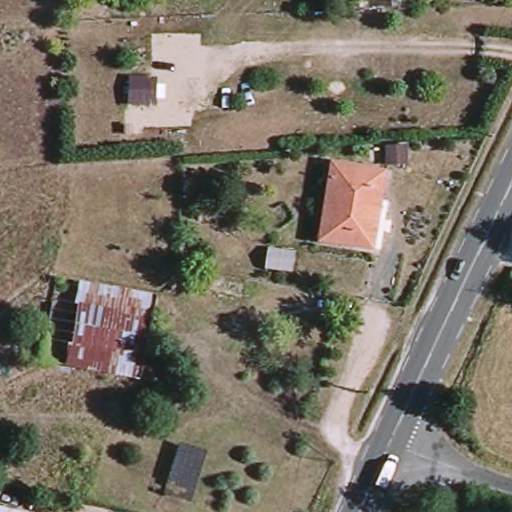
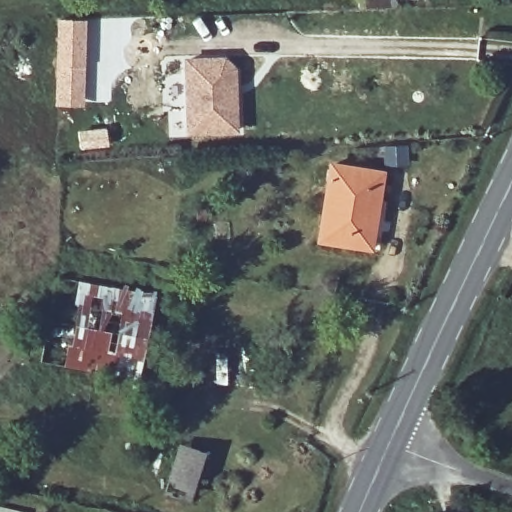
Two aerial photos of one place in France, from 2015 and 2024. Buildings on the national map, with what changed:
new [(84,107),(56,106),(58,19),(87,20),(84,107)]
new [(236,67),(239,133),(186,135),(184,58),(226,57),(236,67)]
unchanged [(312,242),(326,168),(381,176),(366,251),(312,242)]
unchanged [(48,276),(146,291),(132,377),(35,362),(48,276)]
unchanged [(176,442),(199,447),(188,497),(165,492),(176,442)]
unchanged [(0,512),(0,509),(16,512),(0,512)]

